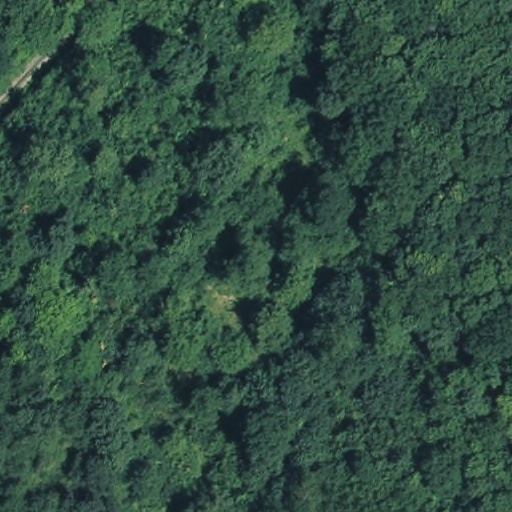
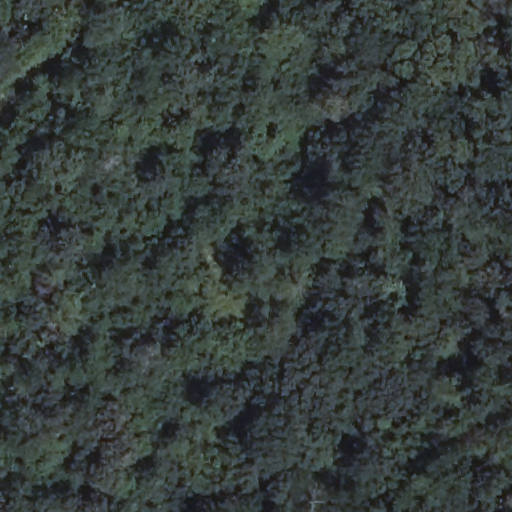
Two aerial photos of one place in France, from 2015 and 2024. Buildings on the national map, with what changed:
[]

